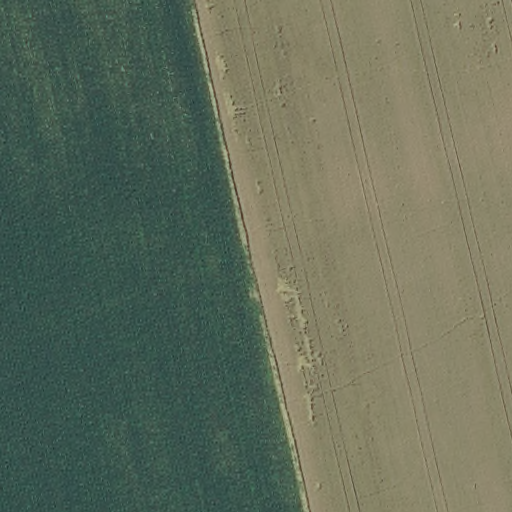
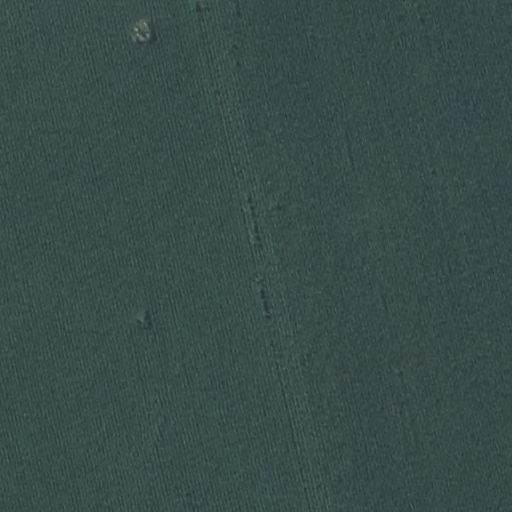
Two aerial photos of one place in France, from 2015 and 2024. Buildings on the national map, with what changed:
[]

